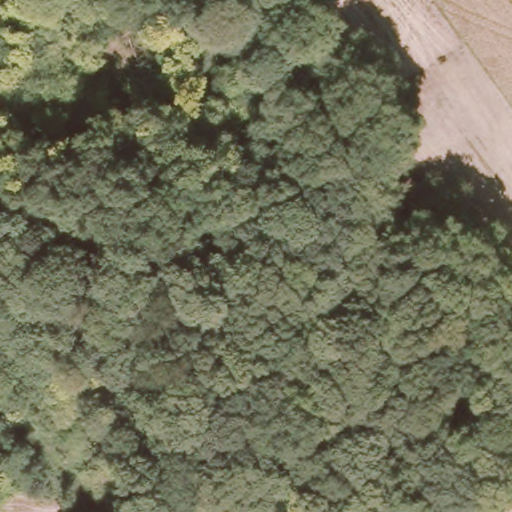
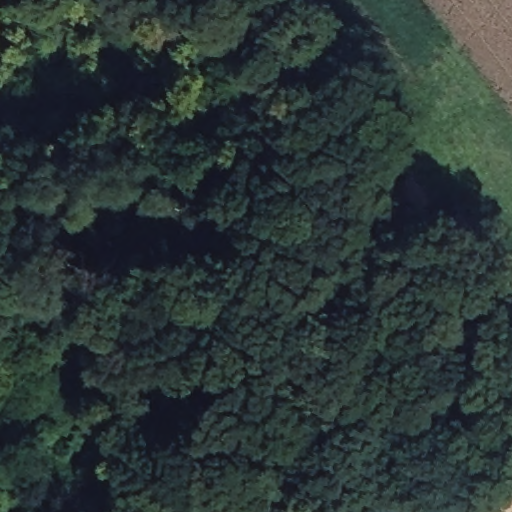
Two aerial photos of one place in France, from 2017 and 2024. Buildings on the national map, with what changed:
unchanged [(406,179),(425,203),(406,218),(387,194),(406,179)]

